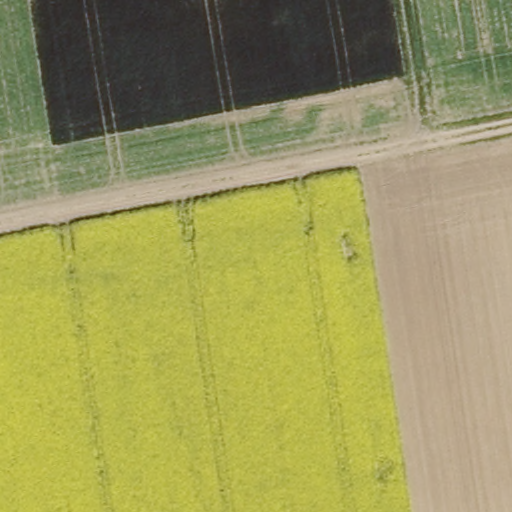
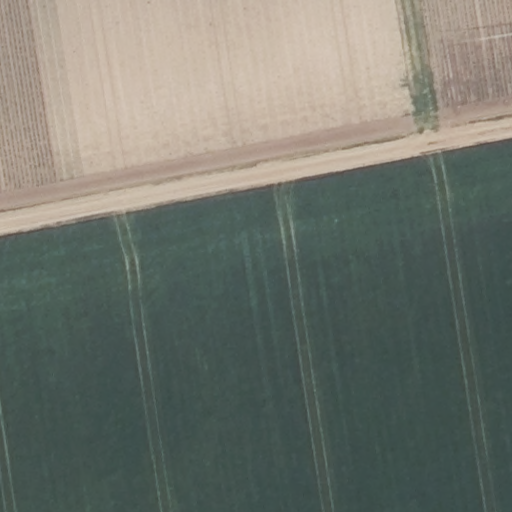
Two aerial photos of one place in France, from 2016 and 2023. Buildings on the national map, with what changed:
[]

